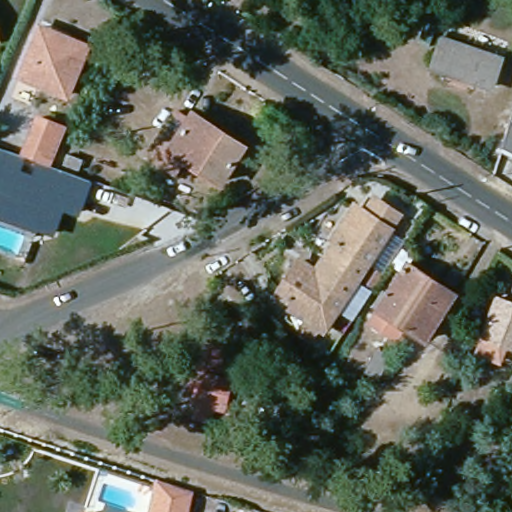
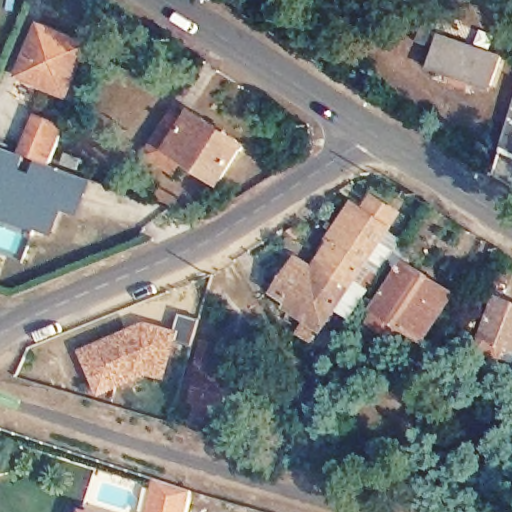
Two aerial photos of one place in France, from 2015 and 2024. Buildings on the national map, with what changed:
unchanged [(67,94),(21,75),(38,34),(40,28),(72,41),(86,47),(67,94)]
unchanged [(0,39),(0,33),(1,38),(0,39)]
unchanged [(451,43),(501,58),(492,86),(432,66),(440,38),(451,43)]
unchanged [(496,152),(512,102),(512,160),(496,152)]
unchanged [(169,158),(156,150),(187,106),(198,114),(204,107),(222,119),(254,141),(229,177),(194,154),(184,169),(169,158)]
unchanged [(51,159),(23,148),(39,113),(66,124),(51,159)]
unchanged [(19,170),(32,174),(37,163),(91,181),(81,217),(60,212),(54,237),(0,218),(0,148),(23,154),(19,170)]
unchanged [(83,154),(79,166),(62,159),(66,148),(83,154)]
unchanged [(359,215),(369,200),(379,207),(399,221),(357,286),(324,266),(325,264),(359,215)]
unchanged [(388,321),(374,311),(413,253),(460,286),(430,330),(408,315),(399,328),(388,321)]
unchanged [(357,286),(328,329),(278,297),(299,266),(316,277),(324,266),(357,286)]
unchanged [(512,298),(512,340),(490,331),(504,295),(512,298)]
new [(129,337),(135,352),(147,346),(152,329),(175,336),(180,316),(201,321),(194,348),(174,343),(164,378),(150,374),(120,387),(114,371),(95,379),(85,355),(103,347),(129,337)]
unchanged [(197,363),(204,338),(224,343),(216,371),(229,376),(223,404),(214,402),(209,415),(195,411),(199,397),(194,395),(197,384),(188,381),(193,362),(197,363)]
unchanged [(197,492),(192,512),(153,512),(161,481),(197,492)]

